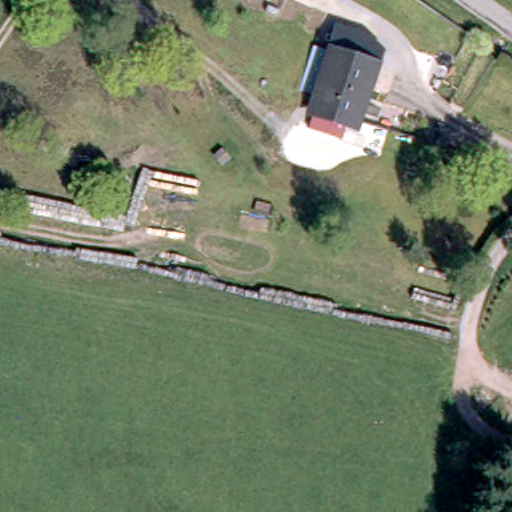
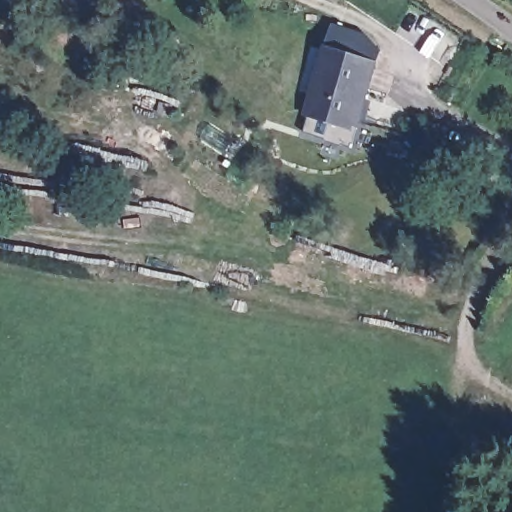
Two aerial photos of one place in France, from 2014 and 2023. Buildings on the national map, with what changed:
unchanged [(377,66),(356,133),(301,118),(321,50),(377,66)]

